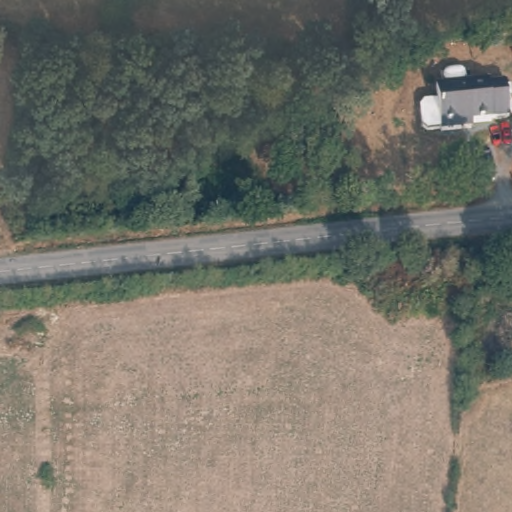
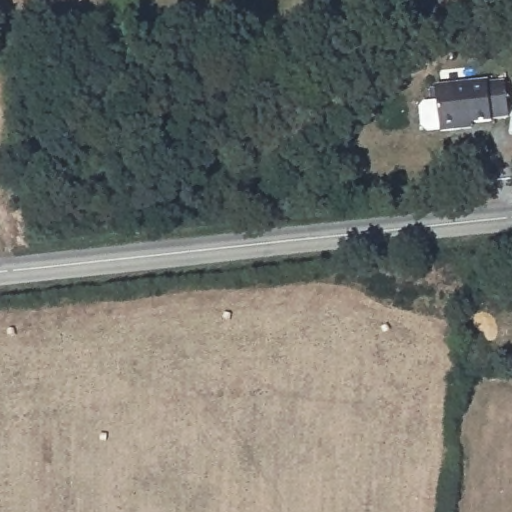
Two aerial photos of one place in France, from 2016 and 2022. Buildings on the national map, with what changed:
unchanged [(506,110),(489,111),(489,115),(457,118),(457,124),(438,125),(438,123),(425,125),(420,121),(418,103),(422,98),(435,96),(433,82),(485,76),(485,78),(502,76),(506,110)]

